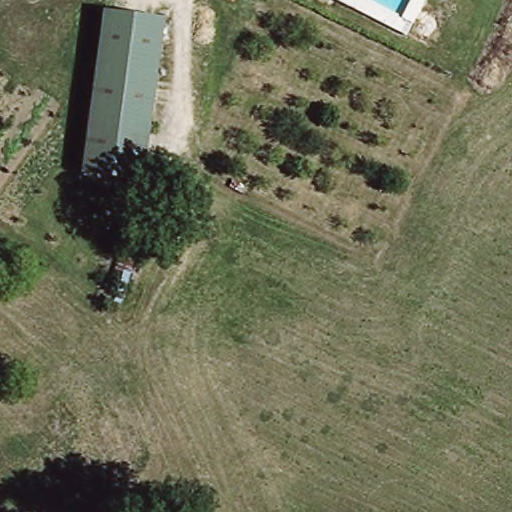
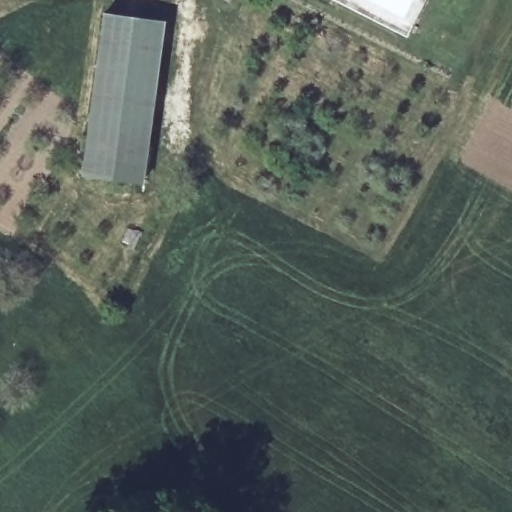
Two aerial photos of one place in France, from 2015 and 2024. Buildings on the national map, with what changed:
unchanged [(81,171),(108,15),(168,26),(141,181),(81,171)]

